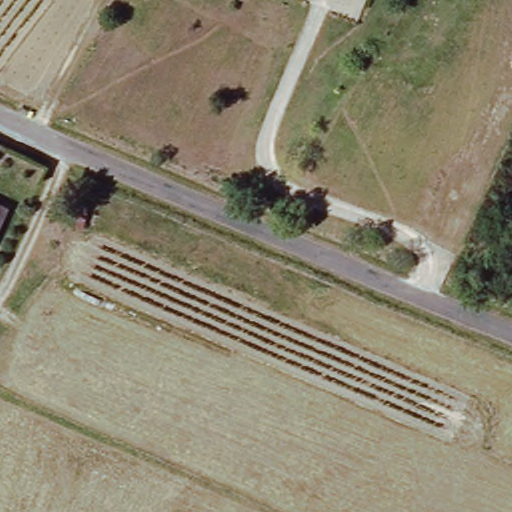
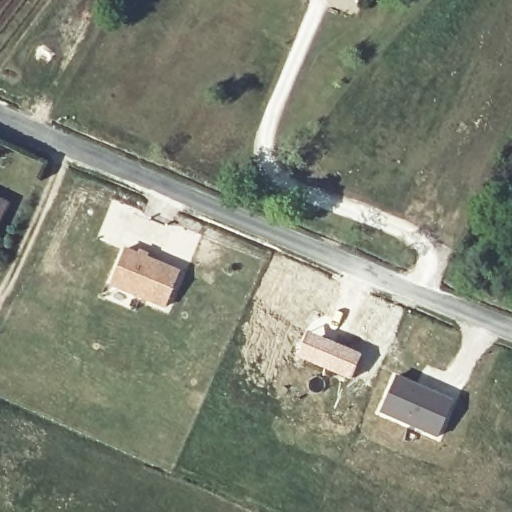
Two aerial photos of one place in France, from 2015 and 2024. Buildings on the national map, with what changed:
unchanged [(0,207),(2,209),(0,213),(0,207)]
new [(107,286),(125,248),(179,272),(164,308),(107,286)]
new [(397,375),(452,400),(437,438),(380,413),(397,375)]

